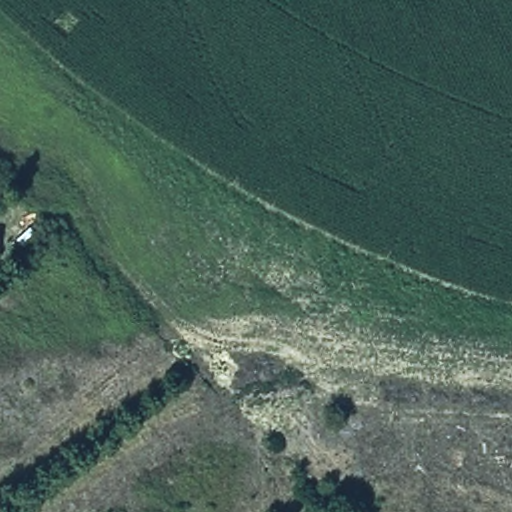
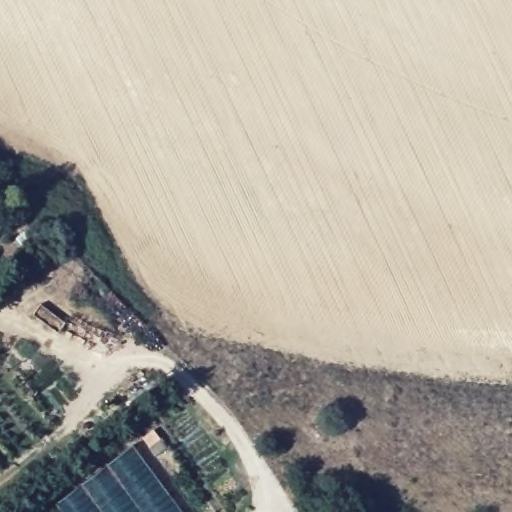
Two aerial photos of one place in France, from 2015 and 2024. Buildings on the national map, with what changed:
new [(61,512),(54,502),(131,446),(180,512),(61,512)]

